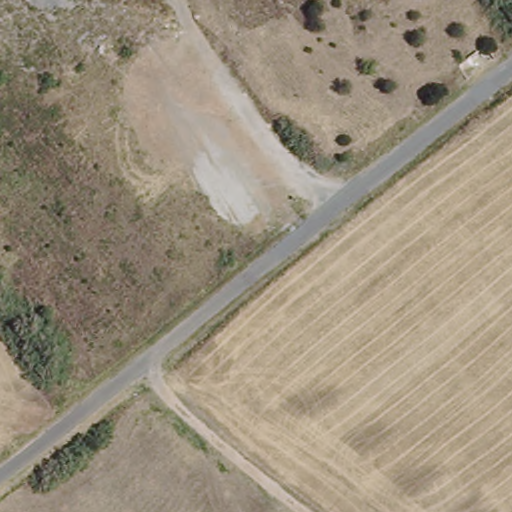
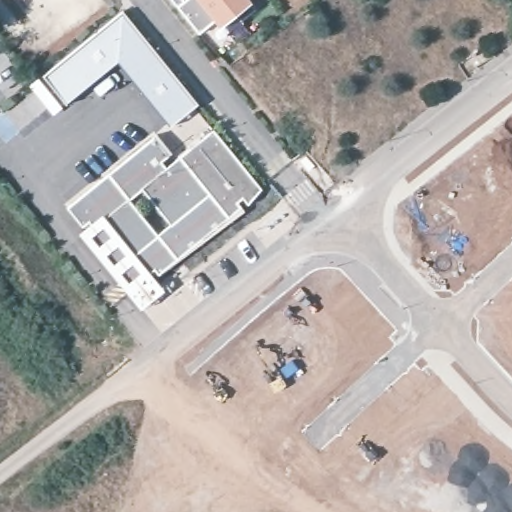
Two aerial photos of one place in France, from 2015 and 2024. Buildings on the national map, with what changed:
new [(221,16),(219,16),(215,10),(199,23),(198,22),(180,0),(254,0),(226,23),(221,16)]
new [(44,74),(124,10),(199,102),(172,125),(119,60),(67,101),(44,74)]
new [(158,135),(172,152),(163,161),(167,166),(214,129),(262,187),(244,207),(155,277),(164,289),(142,307),(81,232),(87,227),(68,205),(158,135)]

